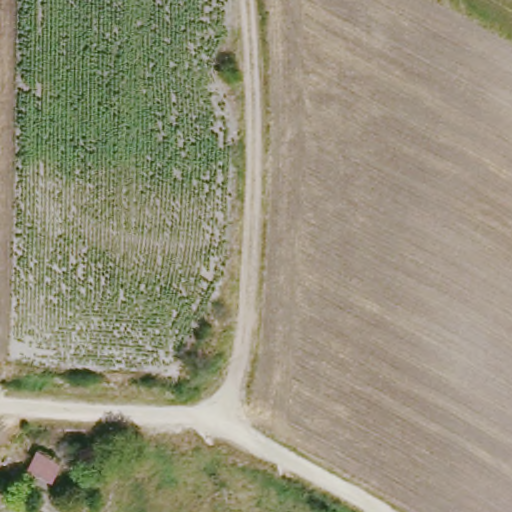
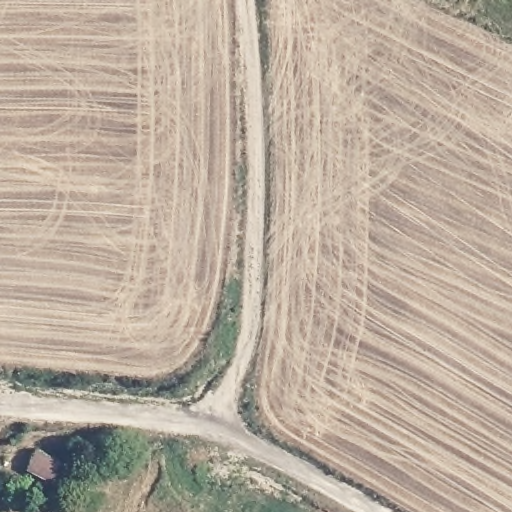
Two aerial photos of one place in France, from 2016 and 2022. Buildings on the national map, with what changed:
unchanged [(67,460),(57,481),(32,469),(40,448),(67,460)]

